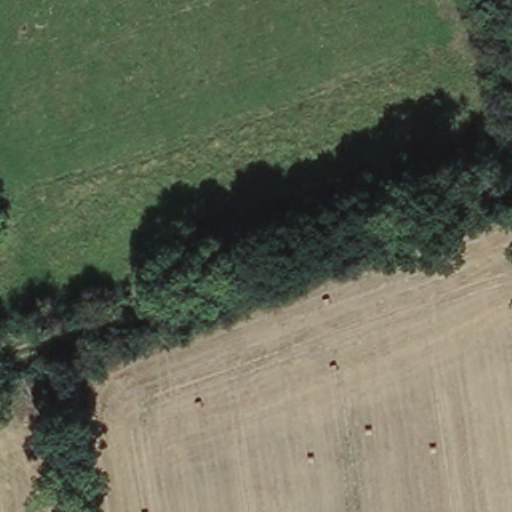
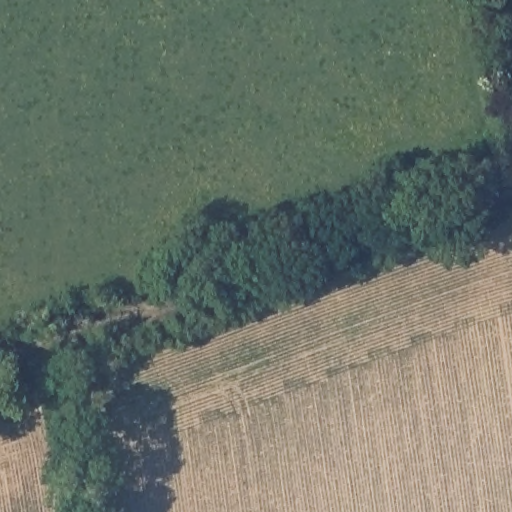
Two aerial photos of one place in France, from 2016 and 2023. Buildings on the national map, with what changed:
[]

